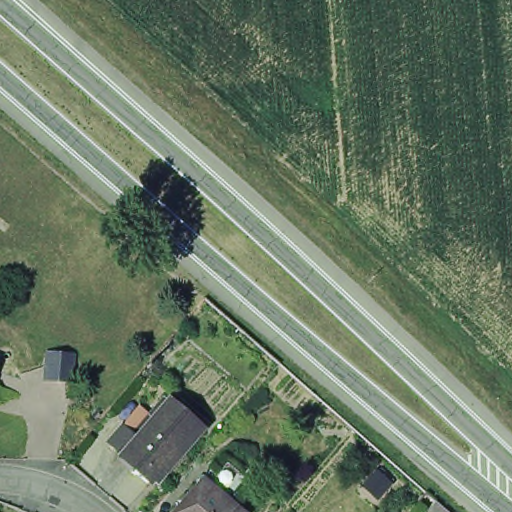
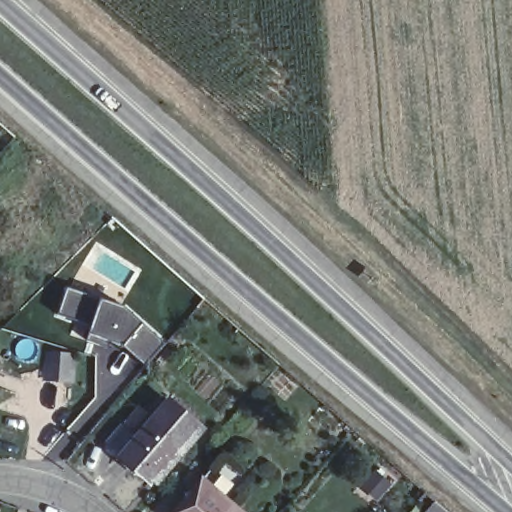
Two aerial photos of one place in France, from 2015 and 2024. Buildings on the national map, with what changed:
new [(66,287),(98,298),(88,327),(56,315),(66,287)]
new [(88,327),(98,298),(125,307),(143,321),(121,347),(85,335),(88,327)]
new [(143,321),(166,341),(144,366),(121,347),(143,321)]
unchanged [(47,379),(49,355),(75,356),(74,381),(47,379)]
unchanged [(173,466),(168,462),(153,481),(123,455),(125,453),(110,440),(123,425),(138,437),(170,399),(200,425),(179,450),(183,455),(173,466)]
unchanged [(377,471),(391,484),(378,498),(364,485),(377,471)]
unchanged [(199,482),(207,472),(233,496),(225,505),(233,512),(172,512),(199,482)]

